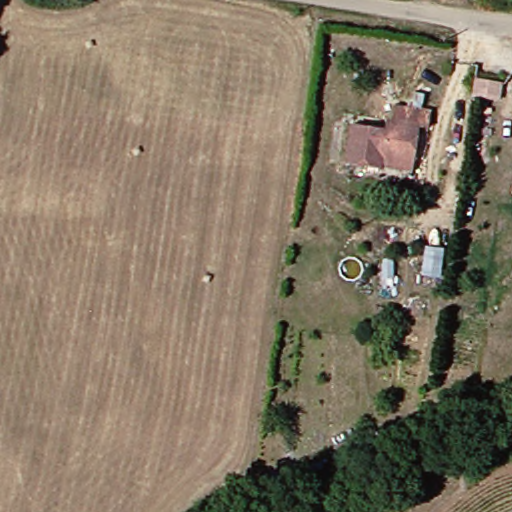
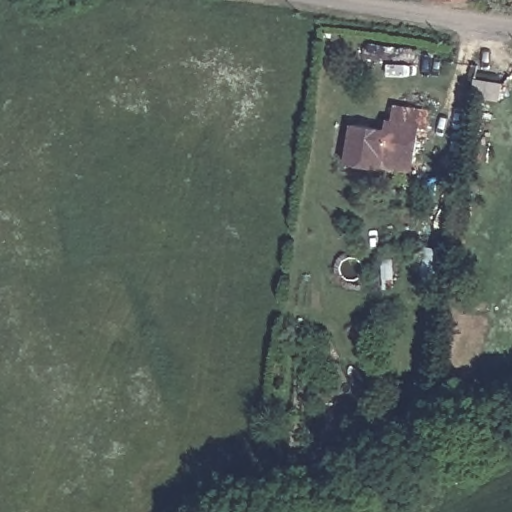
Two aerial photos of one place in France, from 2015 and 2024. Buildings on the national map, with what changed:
unchanged [(424,3),(424,0),(467,0),(468,0),(424,3)]
unchanged [(496,0),(512,0),(512,10),(496,8),(496,0)]
unchanged [(511,103),(484,99),(486,90),(487,83),(512,87),(512,97),(511,103)]
unchanged [(376,170),(376,174),(344,170),(350,128),(382,132),(383,126),(388,127),(390,108),(426,112),(422,133),(413,131),(409,162),(408,174),(376,170)]

